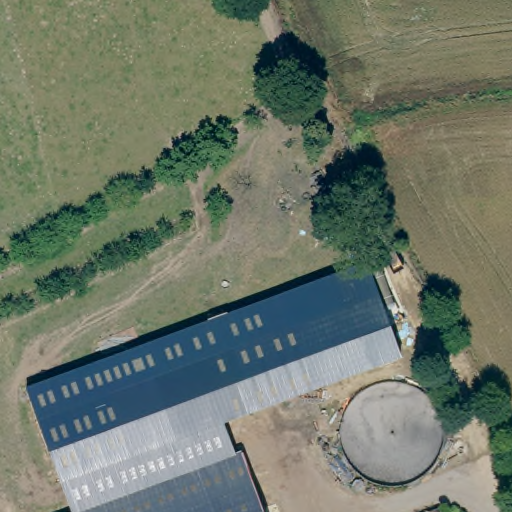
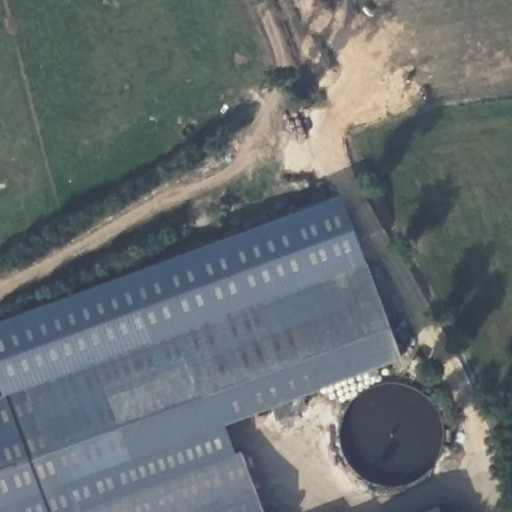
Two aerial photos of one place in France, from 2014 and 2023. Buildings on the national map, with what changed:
new [(343,196),(365,265),(155,342),(129,272),(343,196)]
unchanged [(236,456),(83,512),(74,512),(28,388),(365,265),(378,297),(110,396),(132,457),(225,422),(236,456)]
unchanged [(378,297),(400,358),(132,457),(110,396),(378,297)]
new [(28,388),(74,512),(0,512),(0,398),(28,388)]
unchanged [(242,453),(264,512),(83,512),(242,453)]

